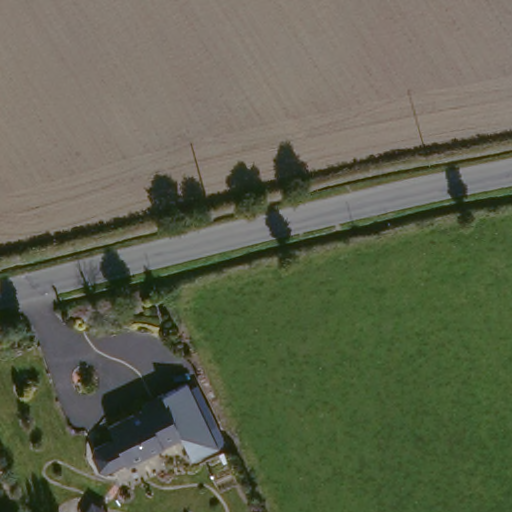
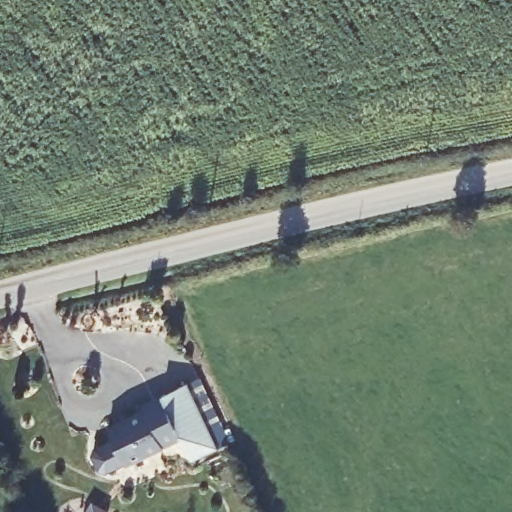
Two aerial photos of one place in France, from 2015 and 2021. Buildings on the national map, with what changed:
unchanged [(177,442),(152,454),(123,469),(121,466),(104,474),(100,474),(96,474),(89,462),(88,457),(89,452),(108,442),(104,431),(119,423),(140,413),(139,409),(157,400),(182,388),(213,453),(188,464),(177,442)]

